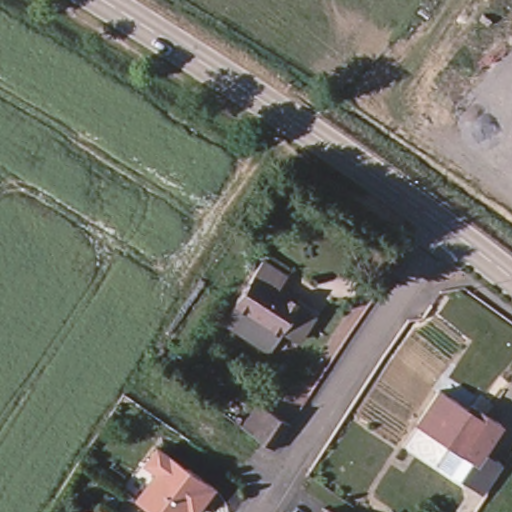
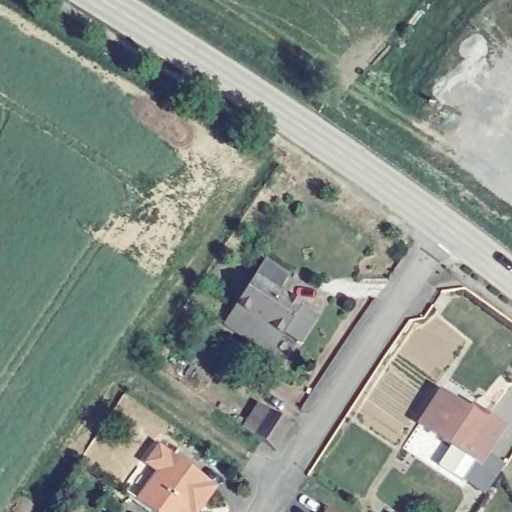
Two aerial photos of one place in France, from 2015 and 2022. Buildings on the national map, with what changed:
unchanged [(285,332),(237,299),(265,259),(289,274),(280,288),(317,314),(309,326),(300,342),(285,332)]
unchanged [(486,489),(472,480),(468,485),(441,467),(454,448),(421,426),(443,393),(470,412),(475,406),(505,427),(486,454),(502,465),(486,489)]
unchanged [(273,450),(251,434),(267,412),(290,427),(273,450)]
unchanged [(163,474),(152,467),(164,450),(176,458),(172,465),(190,478),(194,473),(221,492),(209,510),(201,504),(196,512),(153,512),(142,505),(163,474)]

